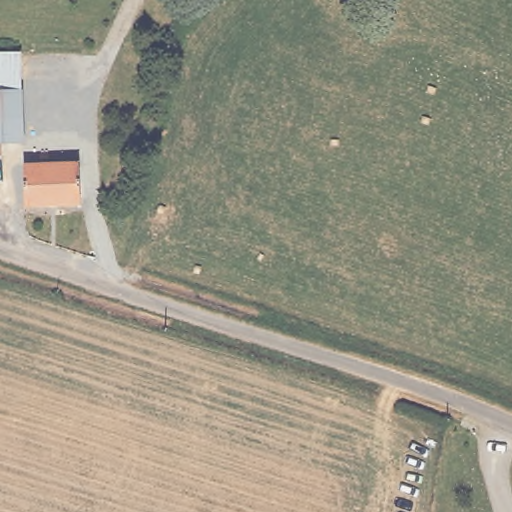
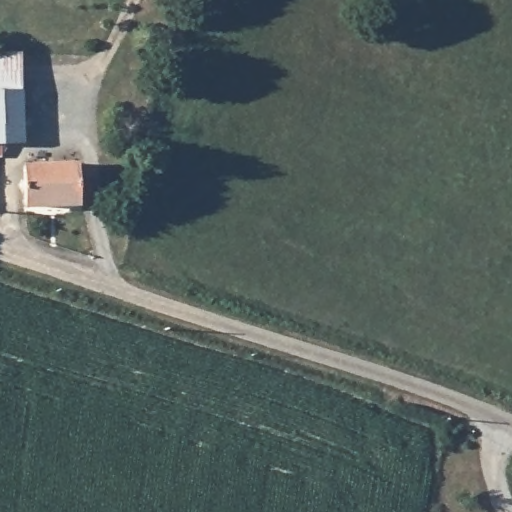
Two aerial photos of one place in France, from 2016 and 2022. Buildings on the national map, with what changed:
unchanged [(26,85),(29,162),(26,162),(0,164),(0,86),(26,85)]
unchanged [(28,204),(26,162),(29,162),(79,160),(81,202),(28,204)]

